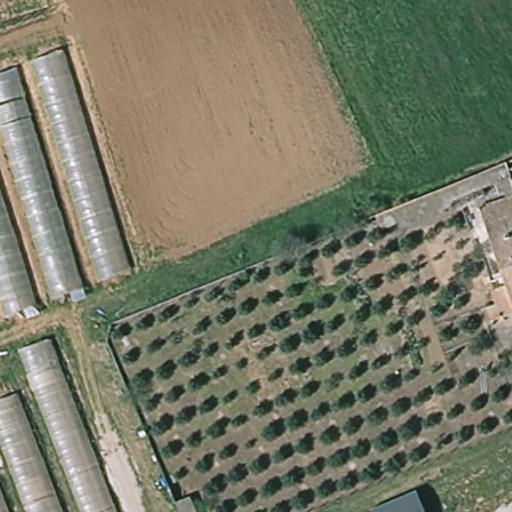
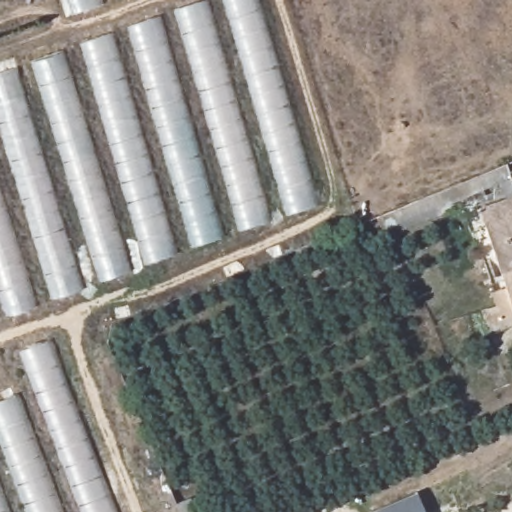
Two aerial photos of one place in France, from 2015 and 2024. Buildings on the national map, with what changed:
new [(63,0),(114,0),(69,16),(63,0)]
new [(146,268),(80,42),(203,0),(257,0),(319,207),(146,268)]
unchanged [(0,317),(0,72),(64,51),(132,272),(0,317)]
unchanged [(502,164),(505,171),(512,169),(512,223),(480,234),(474,208),(503,199),(497,183),(398,224),(392,210),(502,164)]
unchanged [(480,234),(512,223),(512,316),(480,234)]
unchanged [(18,349),(52,336),(119,512),(0,512),(0,397),(30,385),(18,349)]
unchanged [(418,491),(426,512),(369,512),(369,511),(418,491)]
unchanged [(192,497),(198,512),(180,512),(177,503),(192,497)]

